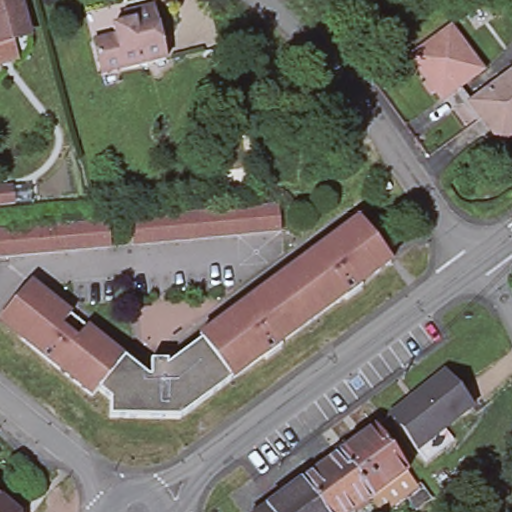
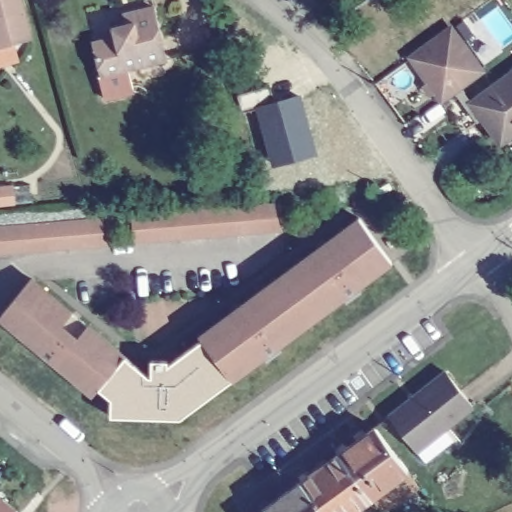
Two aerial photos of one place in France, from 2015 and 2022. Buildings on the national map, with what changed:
unchanged [(11,50),(0,52),(0,0),(15,0),(27,42),(10,47),(11,50)]
unchanged [(164,56),(100,71),(92,37),(114,32),(112,23),(126,20),(124,9),(131,8),(152,3),(164,56)]
unchanged [(407,52),(447,24),(477,66),(437,94),(407,52)]
unchanged [(468,97),(512,67),(512,127),(497,138),(468,97)]
new [(299,98),(316,156),(271,168),(255,111),(299,98)]
unchanged [(389,191),(397,186),(402,194),(393,199),(389,191)]
unchanged [(279,219),(131,231),(129,207),(129,204),(277,192),(278,200),(279,219)]
unchanged [(111,211),(111,214),(114,237),(0,247),(0,219),(111,211)]
unchanged [(362,217),(394,262),(362,286),(364,288),(352,297),(316,251),(362,217)]
unchanged [(349,299),(347,297),(281,344),(284,347),(269,357),(268,355),(183,417),(113,415),(113,397),(101,386),(95,393),(24,334),(28,331),(4,311),(33,276),(150,373),(153,373),(154,358),(171,359),(171,362),(204,338),(202,334),(316,251),(352,297),(349,299)]
unchanged [(424,455),(415,442),(392,411),(389,407),(417,387),(447,365),(474,402),(443,422),(453,435),(424,455)]
unchanged [(366,498),(333,452),(339,449),(369,427),(403,472),(366,498)]
unchanged [(366,498),(346,512),(319,512),(296,481),(333,452),(366,498)]
unchanged [(319,512),(252,512),(296,481),(319,512)]
unchanged [(20,512),(0,512),(0,494),(20,512)]

